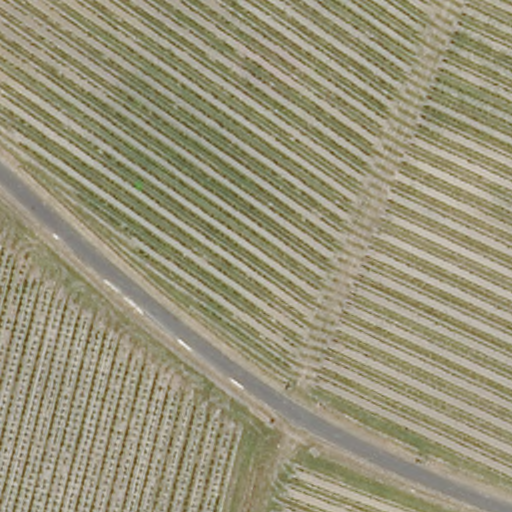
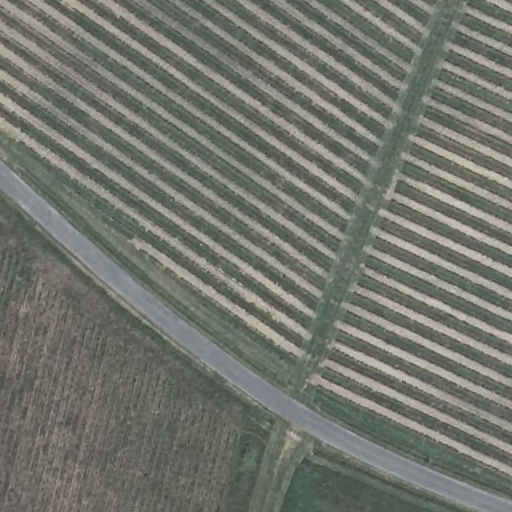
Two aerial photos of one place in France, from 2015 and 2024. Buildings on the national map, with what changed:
[]

